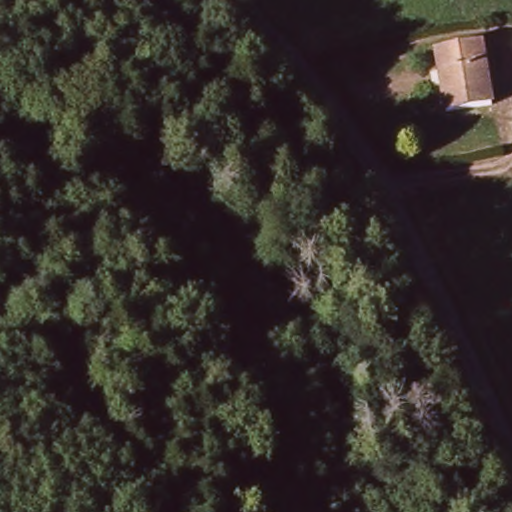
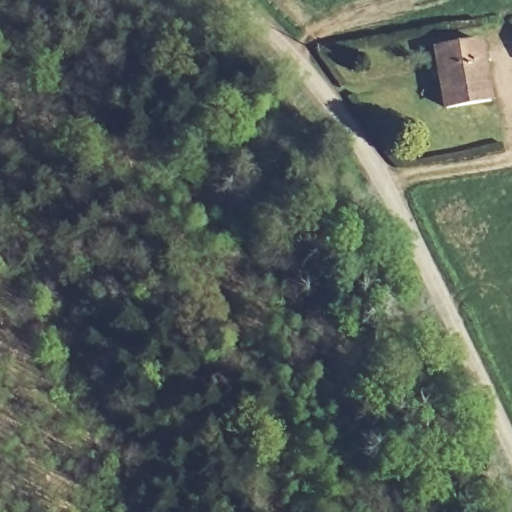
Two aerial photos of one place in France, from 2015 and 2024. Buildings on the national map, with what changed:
unchanged [(487,44),(497,104),(452,111),(443,52),(487,44)]

